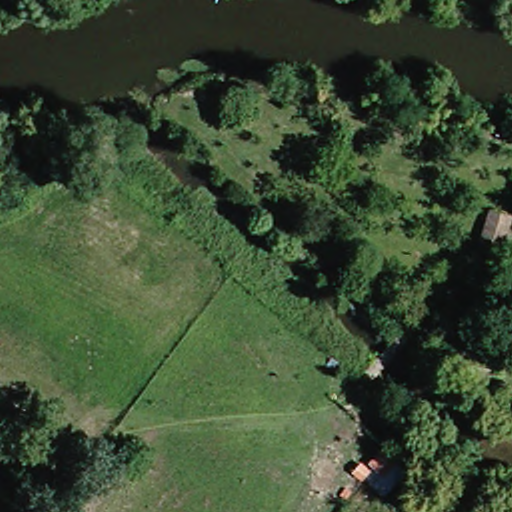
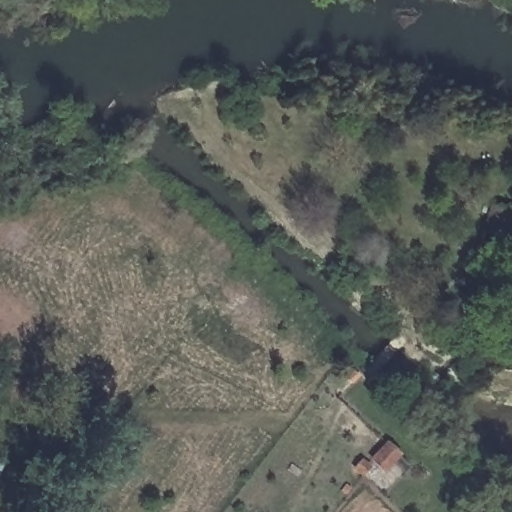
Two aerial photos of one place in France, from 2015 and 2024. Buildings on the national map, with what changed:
unchanged [(512,219),(498,260),(472,252),(488,206),(512,214),(512,219)]

